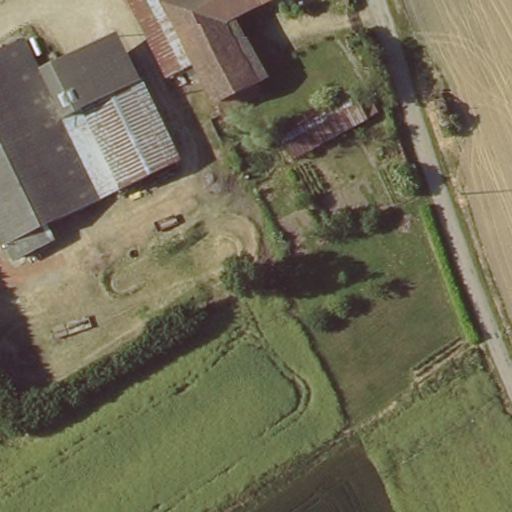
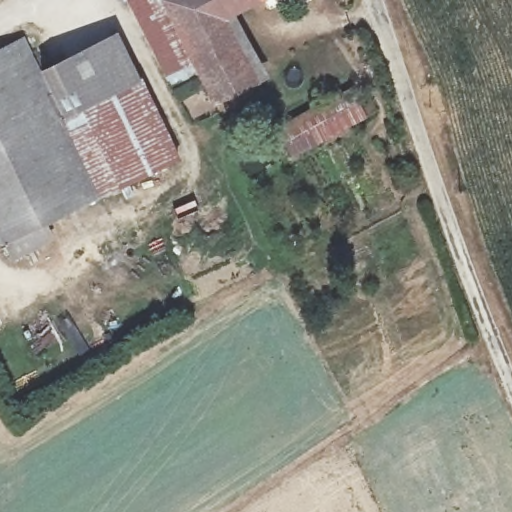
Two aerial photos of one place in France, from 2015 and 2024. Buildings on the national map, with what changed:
unchanged [(221,22),(258,94),(219,115),(193,65),(167,77),(138,16),(129,0),(165,0),(262,0),(221,22)]
unchanged [(112,29),(140,85),(73,119),(43,60),(112,29)]
unchanged [(43,60),(73,119),(140,85),(177,159),(13,243),(0,218),(0,54),(33,37),(43,60)]
unchanged [(354,90),(367,114),(301,150),(289,127),(354,90)]

